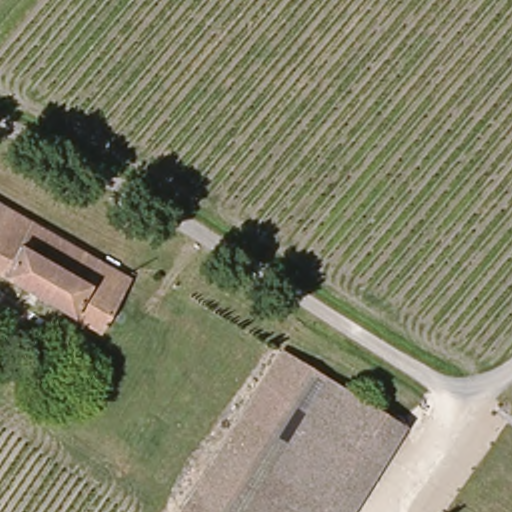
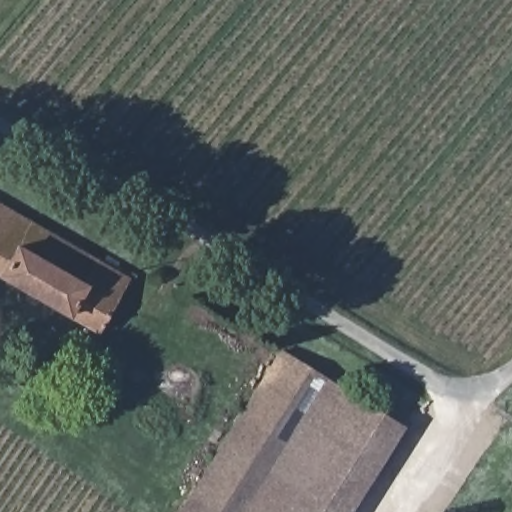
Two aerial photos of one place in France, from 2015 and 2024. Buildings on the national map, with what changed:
unchanged [(0,273),(0,201),(130,275),(99,329),(0,273)]
unchanged [(285,347),(339,383),(286,460),(260,443),(234,426),(285,347)]
unchanged [(234,426),(260,443),(286,460),(339,383),(400,421),(342,512),(279,512),(249,490),(233,512),(176,512),(182,502),(234,426)]
unchanged [(279,512),(233,512),(249,490),(279,512)]

